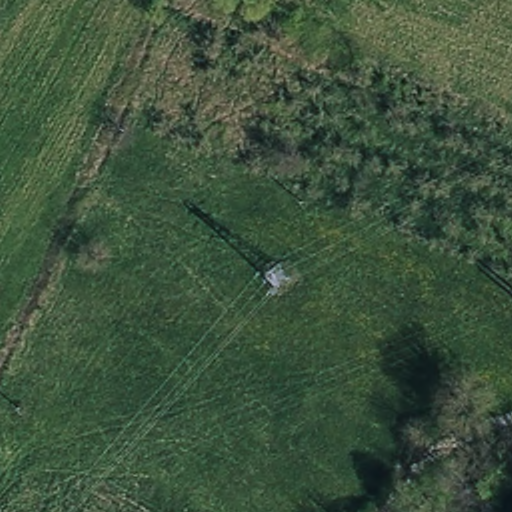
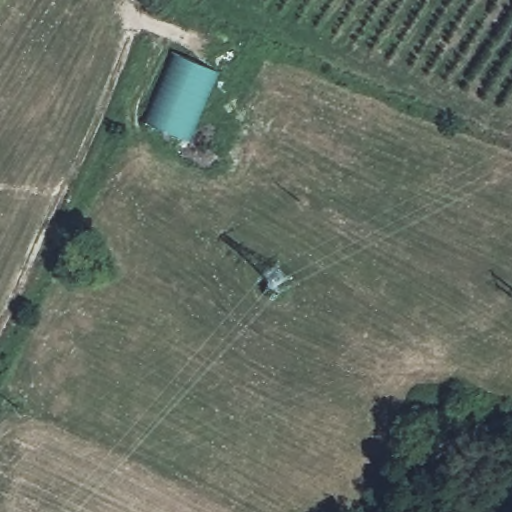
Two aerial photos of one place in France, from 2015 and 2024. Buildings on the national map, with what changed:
new [(173,52),(216,70),(185,139),(142,120),(173,52)]

